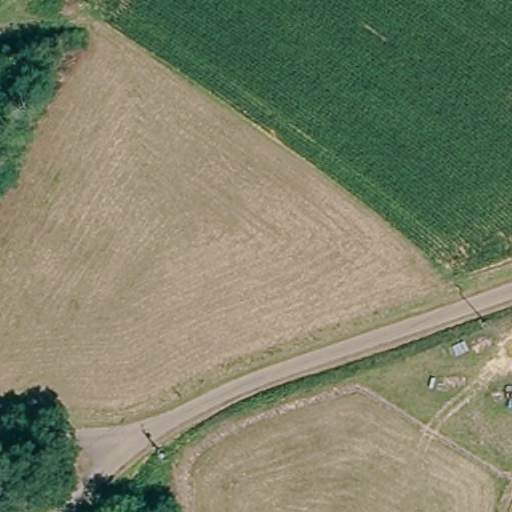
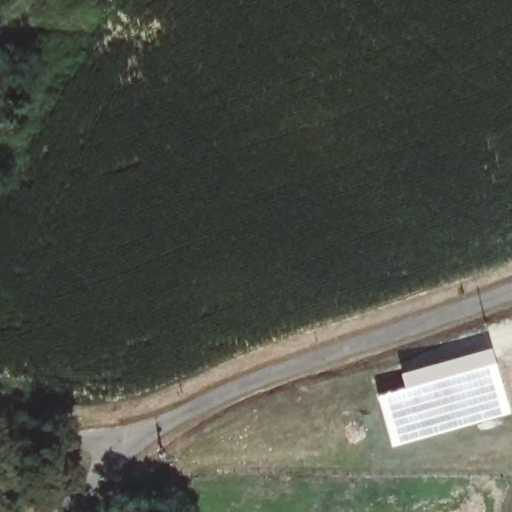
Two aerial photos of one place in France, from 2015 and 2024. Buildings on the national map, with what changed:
new [(393,445),(379,398),(408,389),(403,374),(493,348),(511,411),(393,445)]

